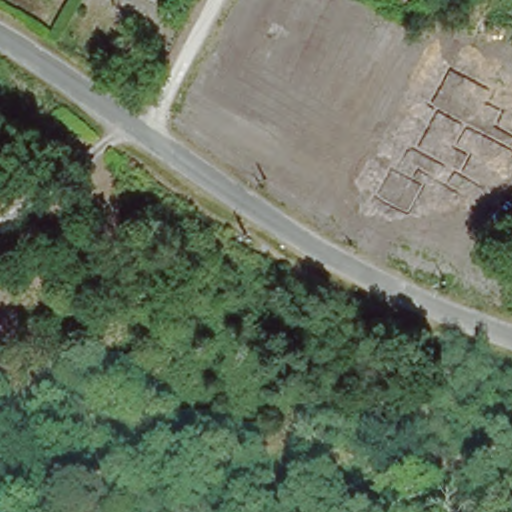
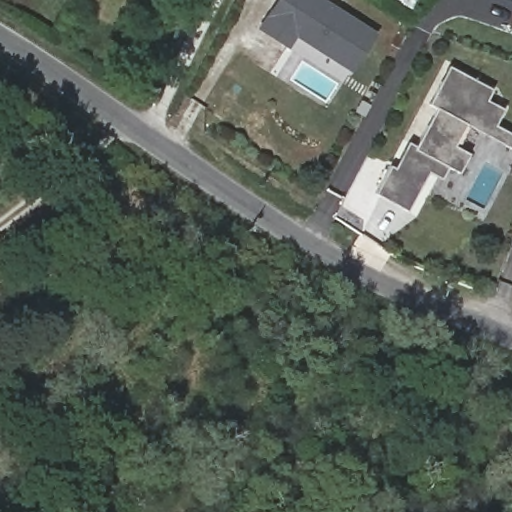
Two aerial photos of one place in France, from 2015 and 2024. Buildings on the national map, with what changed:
new [(353,73),(296,36),(288,49),(257,29),(277,0),(327,0),(378,31),(353,73)]
new [(512,30),(512,33),(511,32),(512,30)]
new [(455,145),(469,152),(460,172),(447,166),(441,179),(428,172),(408,211),(375,193),(390,165),(395,167),(409,143),(416,146),(437,108),(429,104),(449,66),(493,89),(488,100),(505,109),(496,125),(512,134),(512,149),(466,124),(455,145)]

